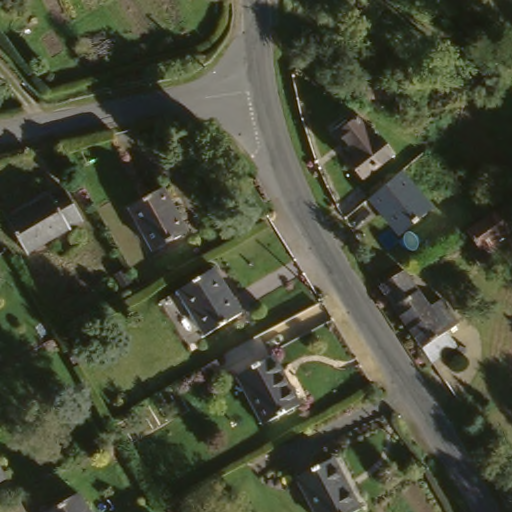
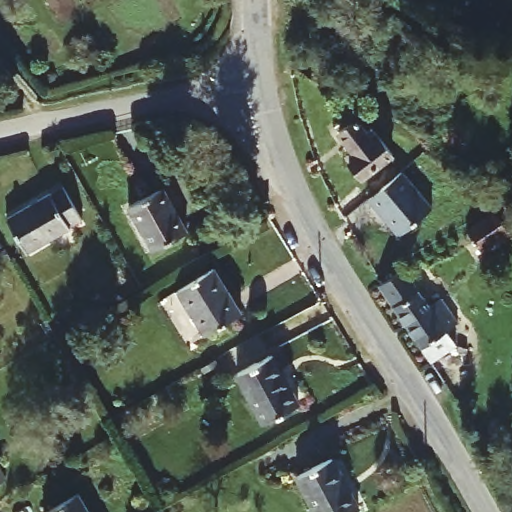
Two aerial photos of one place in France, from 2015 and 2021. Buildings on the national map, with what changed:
unchanged [(364,128),(389,148),(367,179),(346,164),(353,156),(334,142),(348,125),(355,131),(359,126),(363,129),(364,128)]
unchanged [(436,207),(401,238),(368,200),(404,170),(436,207)]
unchanged [(31,262),(8,226),(51,199),(54,203),(64,196),(83,225),(73,231),(74,234),(31,262)]
unchanged [(166,199),(191,243),(156,263),(131,219),(166,199)]
unchanged [(507,207),(512,215),(512,234),(511,235),(481,255),(467,235),(496,215),(507,207)]
unchanged [(214,272),(241,319),(204,342),(177,295),(214,272)]
unchanged [(384,295),(408,278),(433,314),(445,306),(461,331),(448,339),(458,353),(434,371),(384,295)]
unchanged [(269,362),(298,412),(263,432),(234,382),(269,362)]
unchanged [(458,369),(458,373),(456,375),(454,376),(451,376),(449,376),(448,374),(446,372),(446,370),(458,369)]
unchanged [(325,465),(353,512),(310,512),(294,484),(325,465)]
unchanged [(72,498),(80,512),(51,512),(72,498)]

